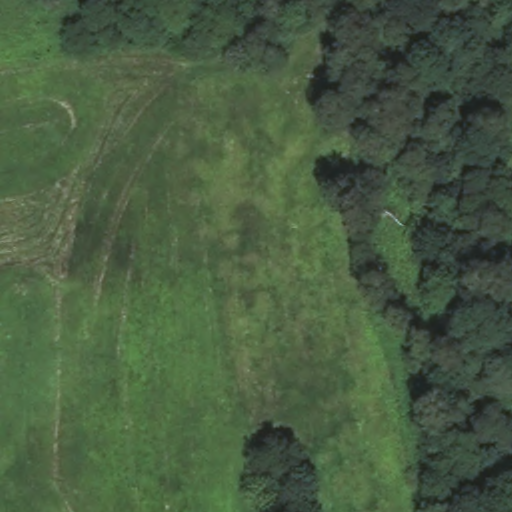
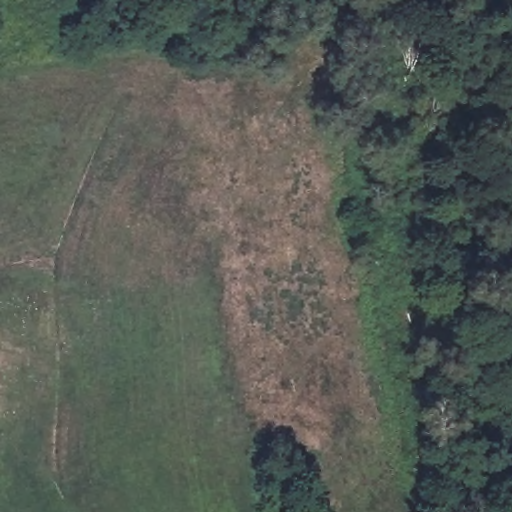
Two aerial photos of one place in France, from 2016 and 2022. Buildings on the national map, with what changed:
unchanged [(298,512),(274,512),(267,482),(288,473),(298,512)]

